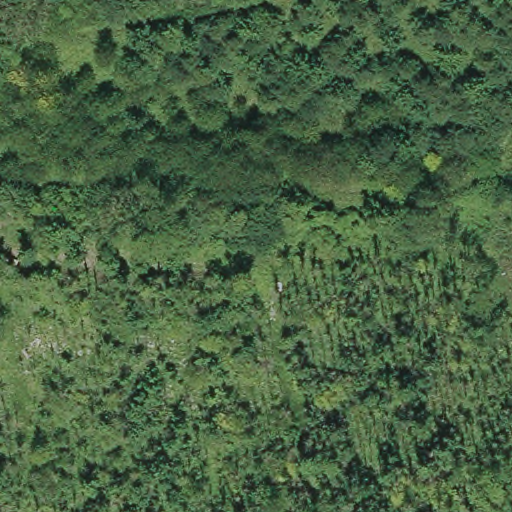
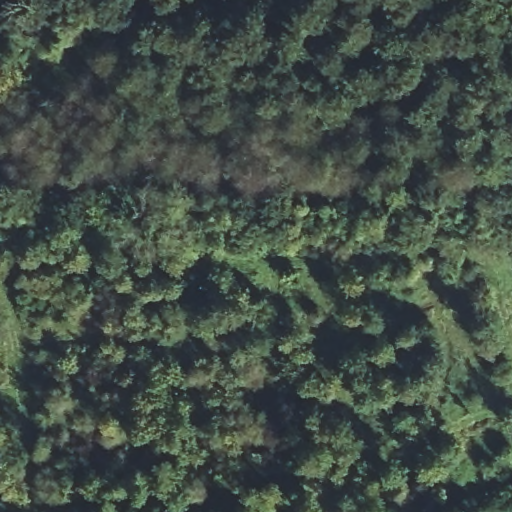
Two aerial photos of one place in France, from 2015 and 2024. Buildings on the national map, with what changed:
[]

